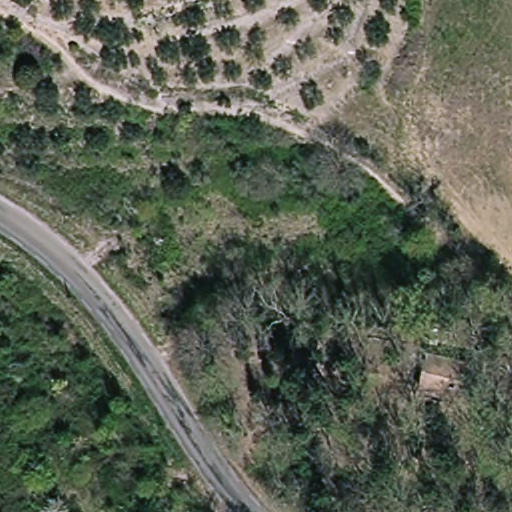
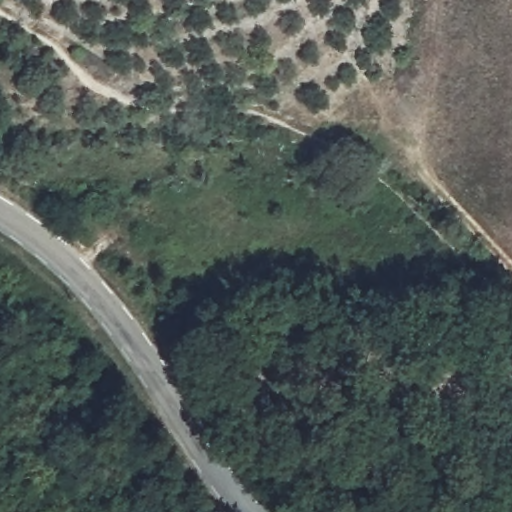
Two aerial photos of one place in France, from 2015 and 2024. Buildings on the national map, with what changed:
unchanged [(462,409),(416,399),(424,362),(470,372),(462,409)]

